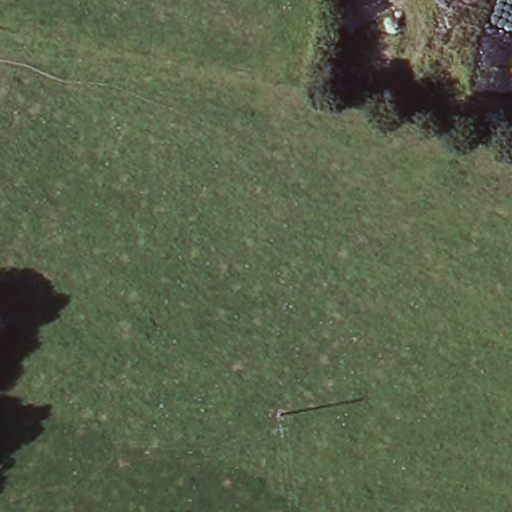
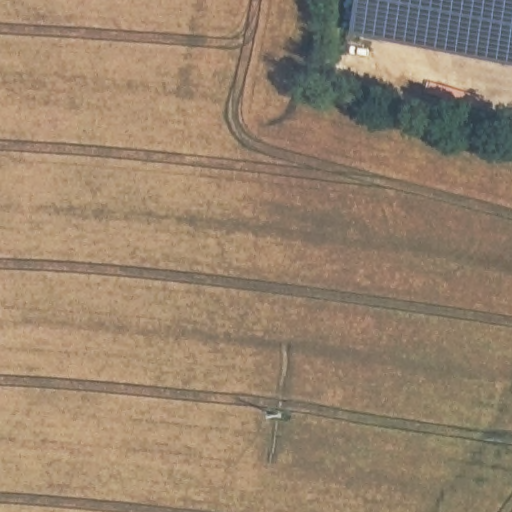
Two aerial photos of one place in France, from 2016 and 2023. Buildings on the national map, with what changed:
new [(512,0),(512,62),(355,32),(360,0),(512,0)]

